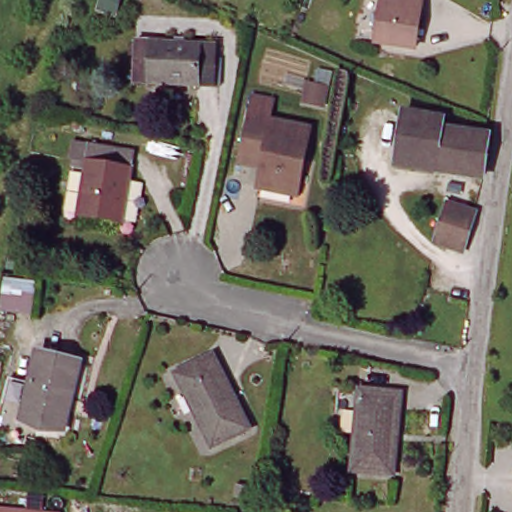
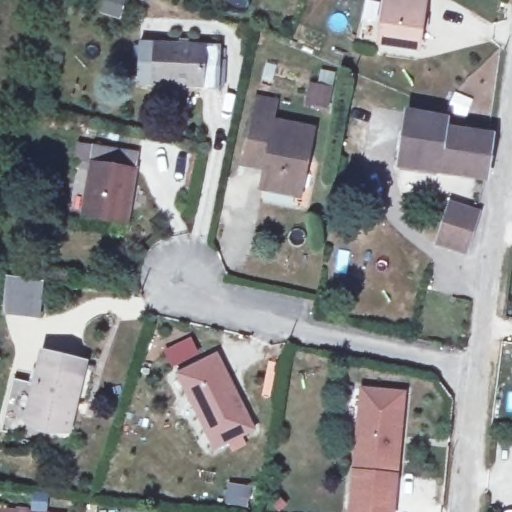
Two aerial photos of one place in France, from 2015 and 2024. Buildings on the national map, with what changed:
unchanged [(377,46),(384,0),(421,0),(412,52),(377,46)]
unchanged [(220,43),(217,90),(135,83),(137,38),(220,43)]
unchanged [(448,119),(447,127),(490,139),(483,176),(398,157),(407,108),(448,119)]
unchanged [(300,129),(288,192),(257,187),(263,154),(242,151),(249,120),(300,129)]
unchanged [(136,152),(125,218),(78,210),(89,145),(136,152)]
unchanged [(475,204),(466,254),(435,246),(445,197),(475,204)]
unchanged [(3,272),(42,276),(37,315),(0,311),(0,286),(3,272)]
unchanged [(68,435),(40,427),(37,439),(0,429),(0,422),(11,377),(27,383),(36,346),(83,361),(68,435)]
unchanged [(248,426),(215,443),(176,367),(211,350),(248,426)]
unchanged [(405,391),(398,471),(352,467),(359,387),(405,391)]
new [(398,471),(395,512),(348,512),(352,467),(398,471)]
unchanged [(28,512),(0,512),(0,509),(28,512)]

